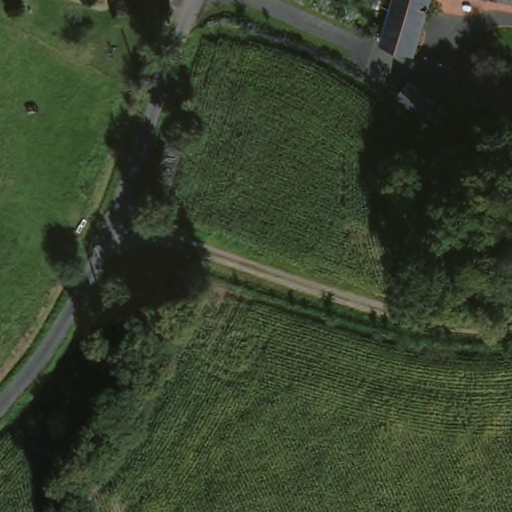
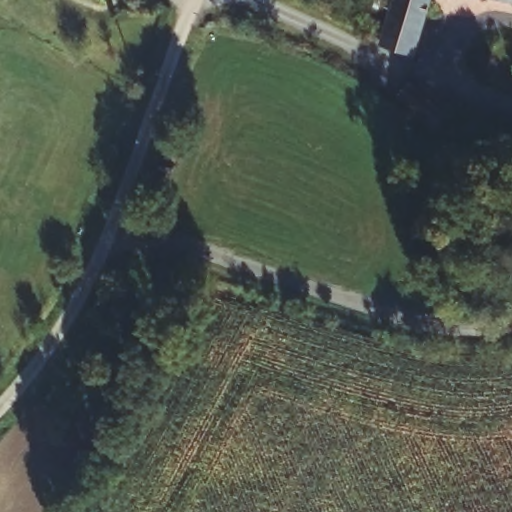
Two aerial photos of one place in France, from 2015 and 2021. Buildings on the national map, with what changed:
unchanged [(423,54),(389,44),(394,23),(401,0),(438,0),(423,54)]
unchanged [(411,82),(449,113),(438,127),(399,96),(411,82)]
unchanged [(194,130),(188,151),(201,154),(192,178),(180,175),(174,194),(155,188),(173,122),(194,130)]

